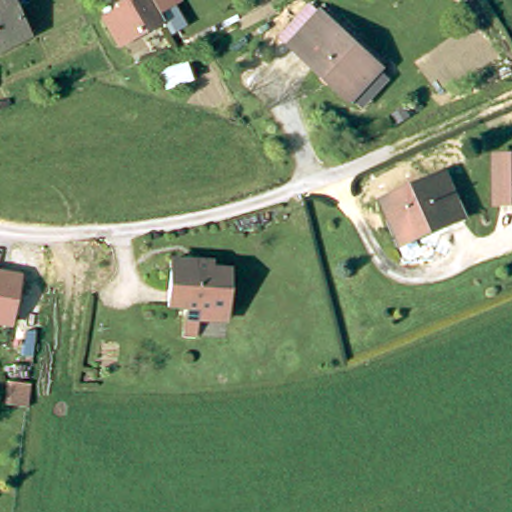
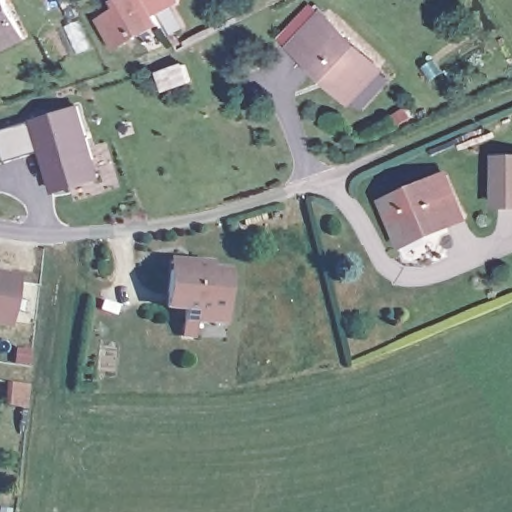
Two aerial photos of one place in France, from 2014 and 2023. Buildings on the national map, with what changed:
unchanged [(0,0),(11,0),(27,31),(0,45),(0,0)]
unchanged [(109,45),(93,20),(114,7),(110,0),(140,0),(141,1),(143,0),(156,0),(159,5),(172,29),(160,35),(150,16),(128,30),(130,34),(109,45)]
unchanged [(304,56),(294,46),(324,15),(334,24),(383,69),(353,101),(304,56)]
new [(52,192),(40,151),(7,161),(0,135),(0,131),(80,105),(102,177),(52,192)]
unchanged [(499,205),(497,161),(512,161),(512,205),(499,205)]
unchanged [(397,235),(380,196),(443,169),(462,213),(423,230),(399,241),(397,235)]
unchanged [(180,331),(180,314),(182,302),(163,301),(165,265),(167,255),(192,257),(205,258),(205,264),(224,265),(222,305),(202,303),(200,315),(191,315),(190,331),(180,331)]
unchanged [(11,329),(0,327),(0,271),(20,274),(11,329)]
unchanged [(10,403),(12,382),(30,384),(29,405),(10,403)]

